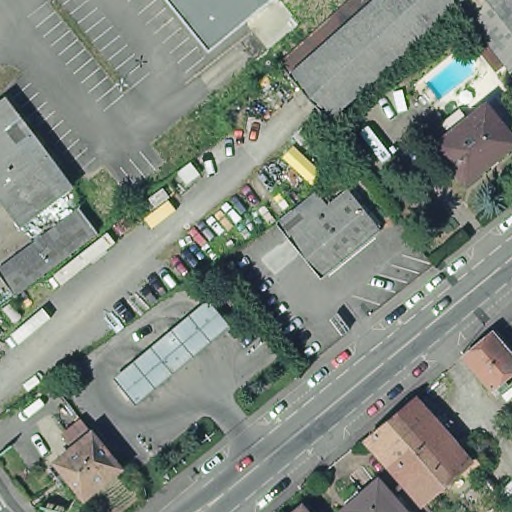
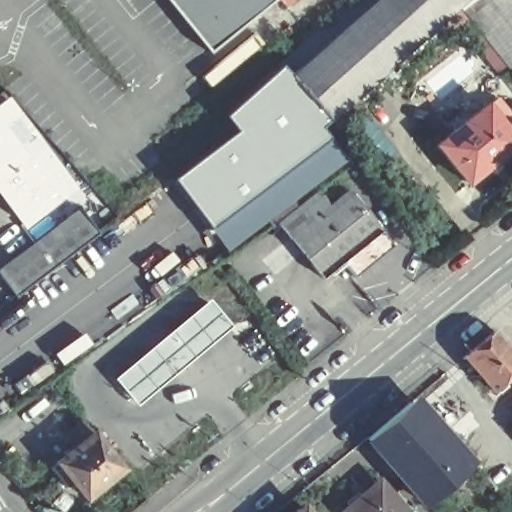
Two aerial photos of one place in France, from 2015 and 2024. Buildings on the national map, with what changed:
unchanged [(168,0),(275,0),(210,52),(168,0)]
unchanged [(279,64),(349,0),(464,0),(457,6),(330,120),(283,70),(279,64)]
unchanged [(457,6),(464,0),(512,0),(512,71),(510,72),(457,6)]
new [(330,120),(355,160),(317,190),(277,223),(230,255),(177,181),(243,133),(229,118),(283,70),(330,120)]
unchanged [(6,97),(23,120),(72,185),(23,222),(0,192),(0,102),(6,97)]
unchanged [(461,116),(467,125),(497,101),(512,121),(512,129),(506,134),(512,141),(512,151),(500,160),(502,161),(485,175),(484,174),(467,186),(437,150),(452,137),(445,129),(461,116)]
unchanged [(317,190),(329,205),(349,190),(381,230),(322,277),(277,223),(317,190)]
unchanged [(15,296),(0,276),(0,268),(80,207),(99,232),(15,296)]
unchanged [(199,307),(217,330),(127,406),(108,383),(199,307)]
unchanged [(512,350),(512,375),(492,391),(465,357),(495,330),(497,332),(512,350)]
unchanged [(482,458),(472,467),(431,503),(372,436),(415,402),(464,457),(473,448),(482,458)]
unchanged [(127,468),(91,497),(62,461),(82,445),(79,441),(95,428),(127,468)]
unchanged [(385,481),(411,512),(348,512),(347,511),(380,483),(384,480),(385,481)]
unchanged [(318,512),(292,512),(304,502),(305,504),(309,500),(318,512)]

